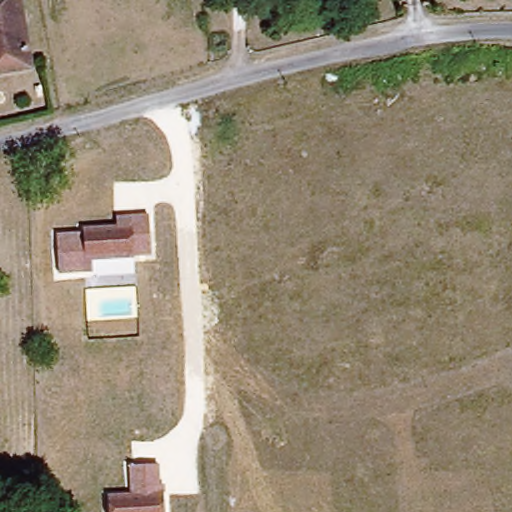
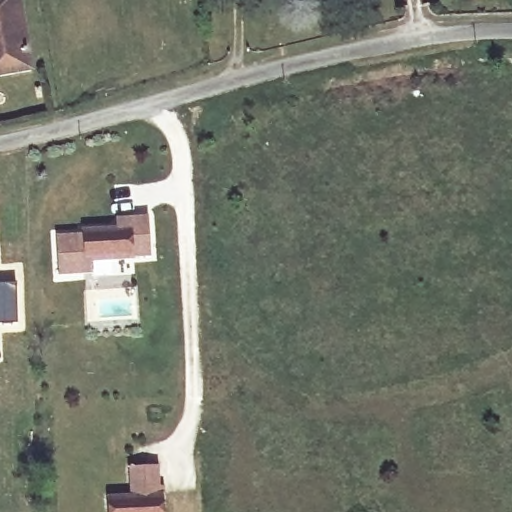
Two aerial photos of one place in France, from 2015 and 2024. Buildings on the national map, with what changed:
unchanged [(32,71),(0,77),(0,0),(20,0),(32,71)]
unchanged [(85,236),(85,229),(117,229),(117,214),(150,213),(150,258),(92,261),(92,275),(60,276),(57,235),(85,236)]
new [(16,323),(0,323),(0,283),(15,283),(16,323)]
unchanged [(160,487),(165,487),(166,512),(112,512),(111,495),(130,494),(129,467),(160,467),(160,487)]

